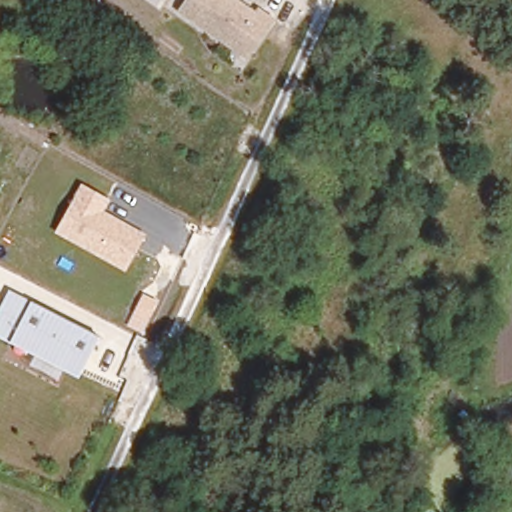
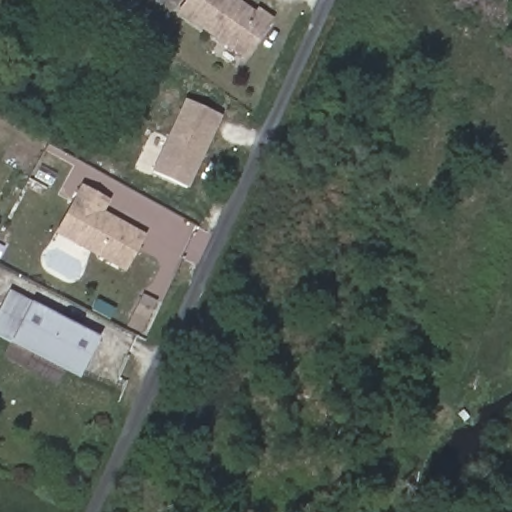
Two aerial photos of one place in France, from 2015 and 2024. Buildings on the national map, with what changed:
unchanged [(244,61),(179,12),(188,0),(237,0),(255,14),(259,9),(275,21),(244,61)]
new [(189,188),(153,170),(185,99),(224,116),(189,188)]
unchanged [(104,212),(145,234),(125,272),(54,232),(81,184),(109,200),(104,212)]
unchanged [(0,334),(0,318),(11,295),(103,342),(85,375),(0,334)]

